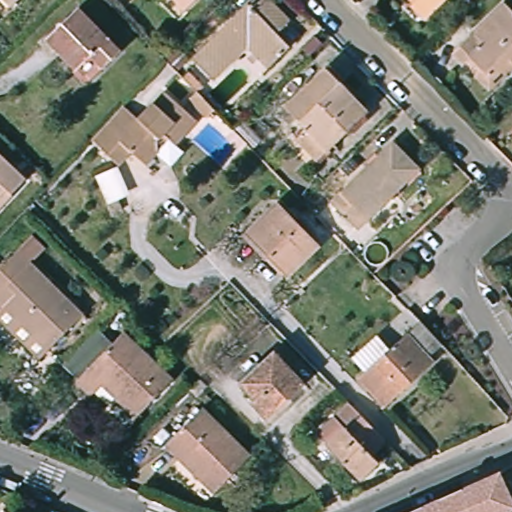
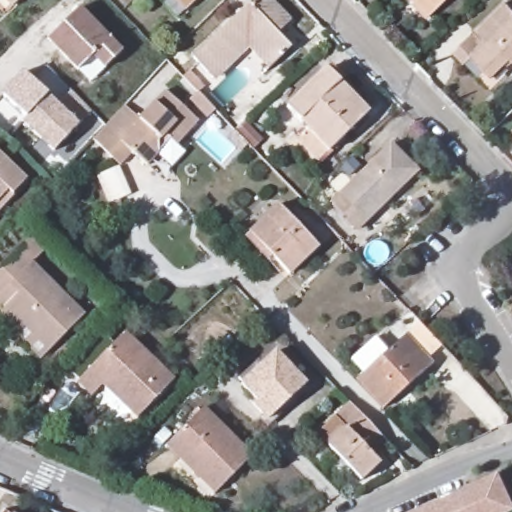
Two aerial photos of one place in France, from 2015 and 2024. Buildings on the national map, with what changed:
unchanged [(8,6),(2,0),(14,0),(8,6)]
unchanged [(182,5),(177,0),(187,0),(182,5)]
unchanged [(244,0),(269,0),(285,16),(274,28),(286,42),(266,61),(243,41),(215,70),(194,49),(244,0)]
unchanged [(430,17),(413,0),(447,0),(430,17)]
unchanged [(75,3),(117,46),(100,64),(89,51),(74,65),(43,35),(75,3)]
unchanged [(502,6),(512,16),(512,68),(490,90),(455,52),(502,6)]
unchanged [(328,64),(341,77),(338,80),(366,109),(318,155),(297,134),(309,121),(289,101),(328,64)]
new [(48,94),(47,95),(56,104),(57,105),(72,90),(92,111),(53,150),(22,120),(26,116),(2,93),(25,70),(48,94)]
unchanged [(121,106),(136,120),(166,89),(198,120),(175,144),(182,152),(167,166),(155,153),(143,165),(121,144),(106,159),(88,139),(121,106)]
unchanged [(512,131),(512,135),(510,133),(512,131)]
unchanged [(395,132),(420,159),(358,219),(333,193),(395,132)]
unchanged [(0,208),(0,156),(26,181),(0,208)]
unchanged [(278,205),(319,247),(291,274),(250,233),(278,205)]
unchanged [(46,245),(32,259),(84,312),(42,355),(0,313),(0,308),(3,304),(0,301),(0,264),(33,232),(46,245)]
unchanged [(497,276),(490,263),(512,247),(512,265),(497,276)]
unchanged [(431,356),(435,361),(384,406),(359,377),(410,331),(411,332),(423,322),(444,345),(431,356)]
unchanged [(126,333),(174,380),(138,417),(104,385),(94,395),(79,381),(126,333)]
unchanged [(306,385),(268,420),(254,405),(258,401),(242,385),(276,352),(306,385)]
unchanged [(375,456),(380,462),(363,480),(320,435),(350,404),(388,442),(375,456)]
unchanged [(204,408),(252,457),(216,493),(168,445),(204,408)]
unchanged [(501,472),(512,495),(512,511),(510,512),(414,512),(430,505),(501,472)]

